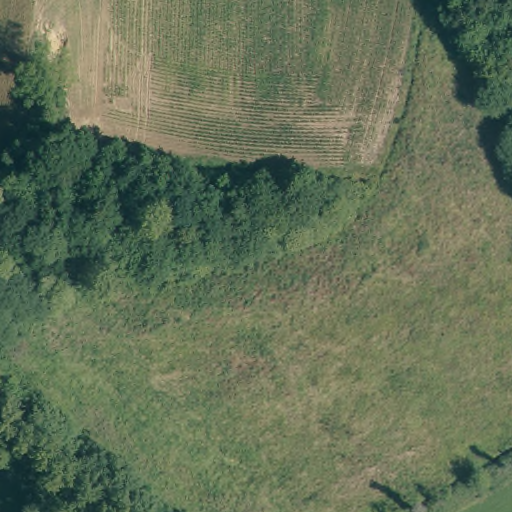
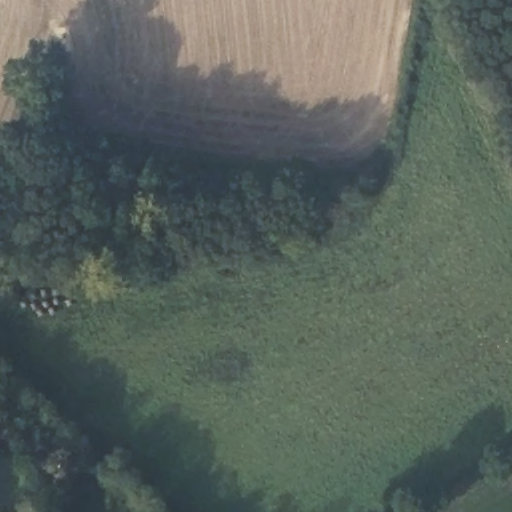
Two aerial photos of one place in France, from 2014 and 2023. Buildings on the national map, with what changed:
[]

